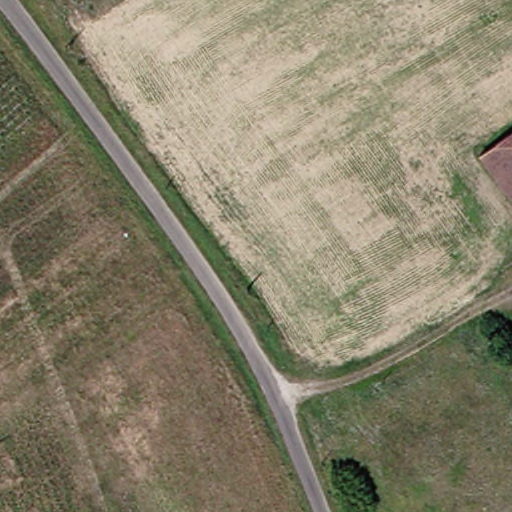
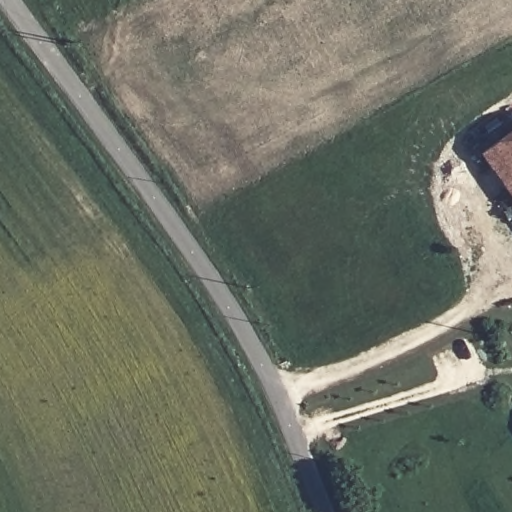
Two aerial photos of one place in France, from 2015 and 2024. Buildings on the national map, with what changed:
unchanged [(490,154),(482,144),(492,138),(499,147),(512,138),(512,185),(490,154)]

